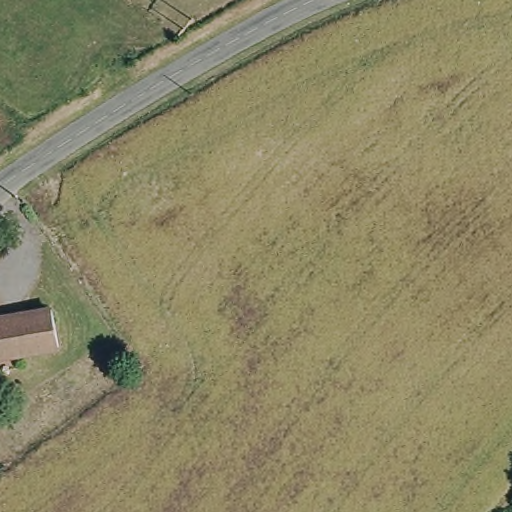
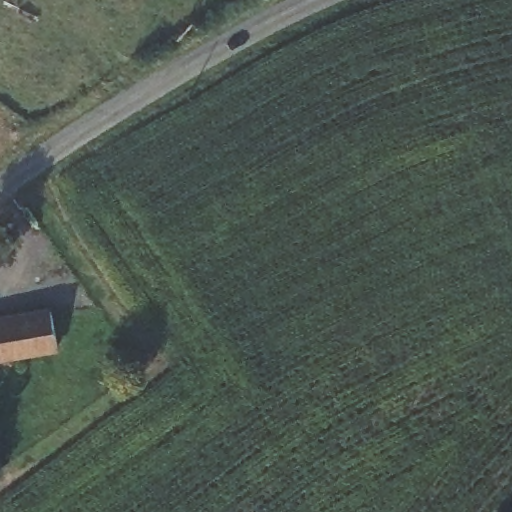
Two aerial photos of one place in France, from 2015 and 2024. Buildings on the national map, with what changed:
unchanged [(60,343),(0,354),(0,309),(53,301),(60,343)]

